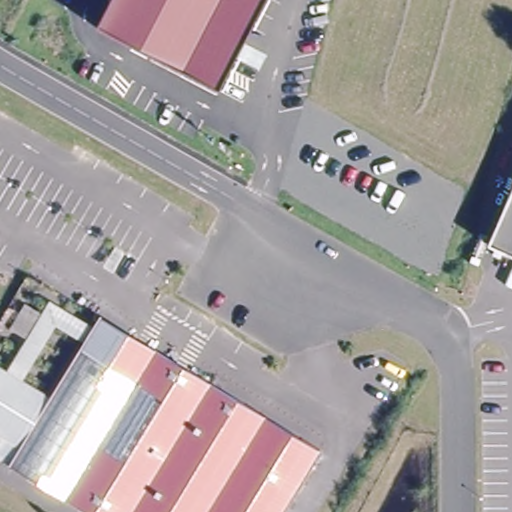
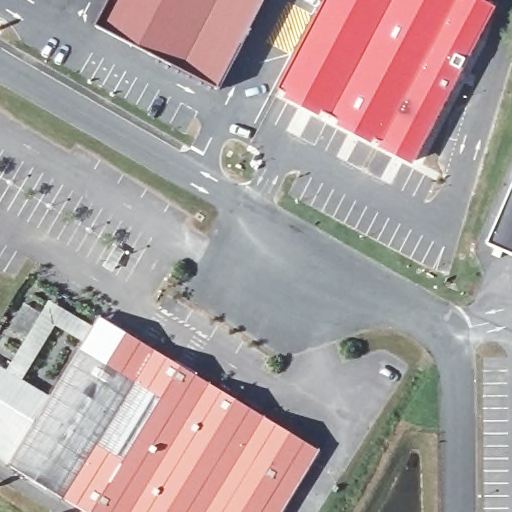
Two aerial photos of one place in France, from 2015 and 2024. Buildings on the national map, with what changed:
unchanged [(111,0),(270,0),(221,98),(93,35),(111,0)]
new [(413,165),(381,149),(384,142),(376,139),(373,144),(339,127),(341,120),(323,110),(319,116),(286,100),(289,94),(280,89),(327,0),(480,0),(496,9),(413,165)]
unchanged [(512,194),(512,257),(487,246),(512,194)]
unchanged [(7,371),(27,339),(11,328),(26,304),(43,314),(51,301),(95,326),(100,317),(321,451),(284,512),(85,512),(11,467),(0,460),(0,366),(7,371)]

